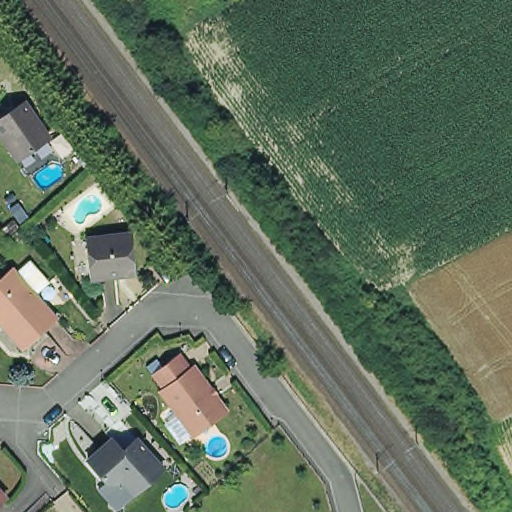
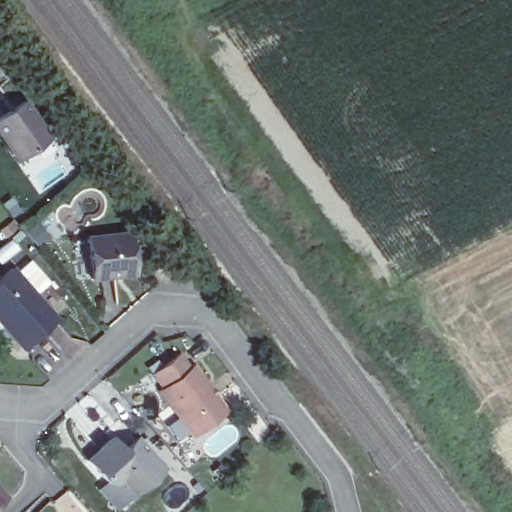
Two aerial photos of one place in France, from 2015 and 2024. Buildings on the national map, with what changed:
unchanged [(60,146),(30,168),(5,131),(35,110),(60,146)]
unchanged [(92,240),(133,235),(138,271),(138,275),(120,276),(102,279),(96,280),(94,261),(92,240)]
unchanged [(67,323),(30,358),(0,321),(0,287),(21,267),(67,323)]
unchanged [(173,399),(163,386),(192,365),(202,378),(205,375),(240,421),(204,447),(170,402),(173,399)]
unchanged [(118,493),(100,473),(127,450),(139,465),(150,455),(173,481),(145,506),(133,491),(130,495),(118,493)]
unchanged [(8,512),(0,512),(0,488),(15,505),(8,512)]

